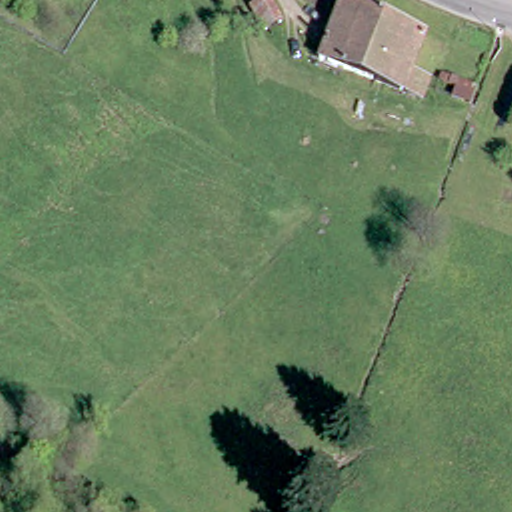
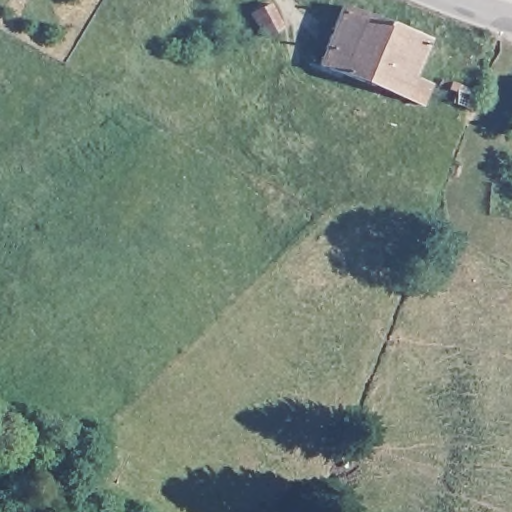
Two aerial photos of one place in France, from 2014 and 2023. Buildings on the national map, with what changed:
unchanged [(281,26),(268,34),(256,14),(269,6),(281,26)]
unchanged [(349,85),(324,75),(349,11),(433,44),(418,82),(437,89),(429,110),(351,79),(349,85)]
unchanged [(454,102),(458,93),(451,90),(454,83),(477,93),(471,109),(454,102)]

